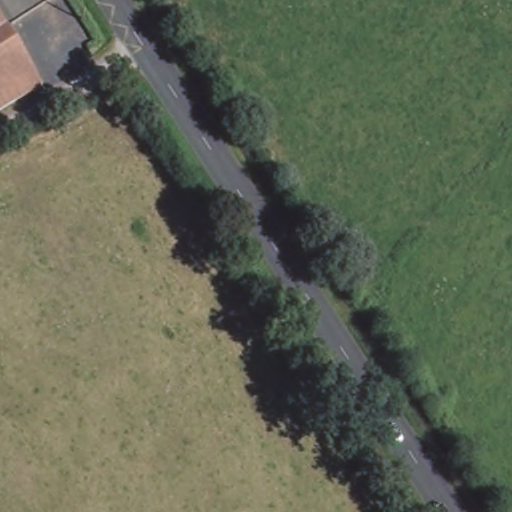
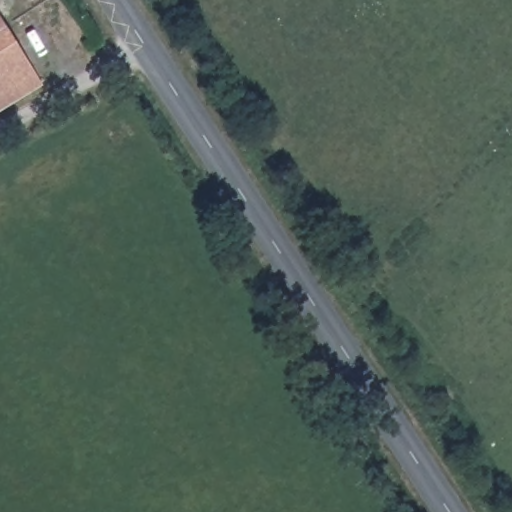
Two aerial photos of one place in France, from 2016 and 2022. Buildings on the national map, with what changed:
unchanged [(0,19),(42,86),(0,113),(0,19)]

